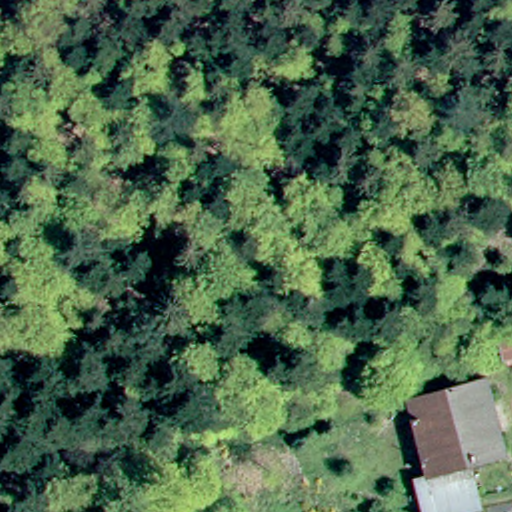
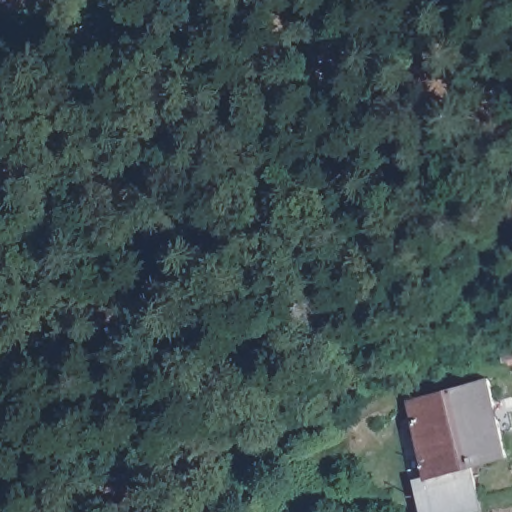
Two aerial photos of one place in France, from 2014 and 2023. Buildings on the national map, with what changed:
unchanged [(512,342),(512,356),(509,343),(512,342)]
unchanged [(512,458),(479,472),(485,512),(425,512),(417,483),(432,477),(415,405),(495,381),(512,442),(512,458)]

